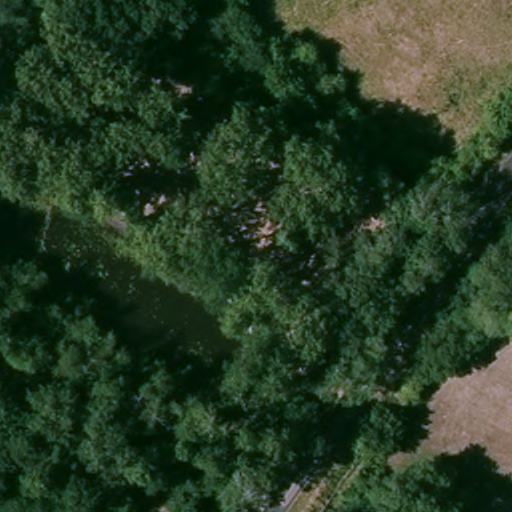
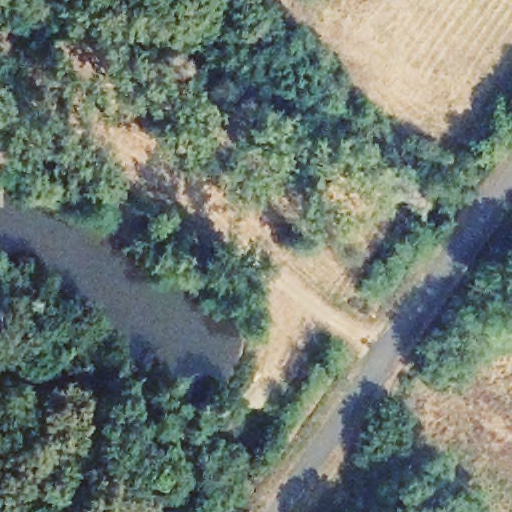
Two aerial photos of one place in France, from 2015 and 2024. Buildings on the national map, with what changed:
[]

